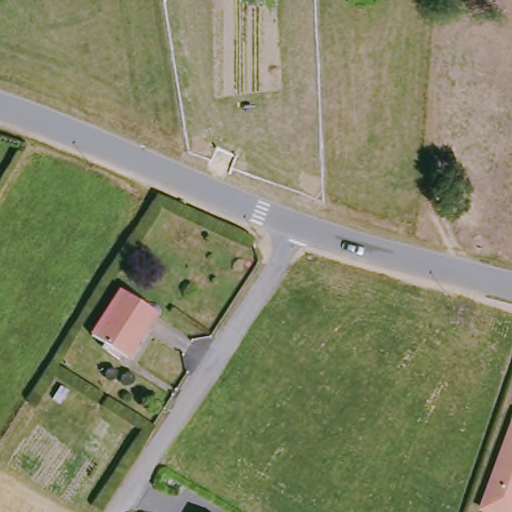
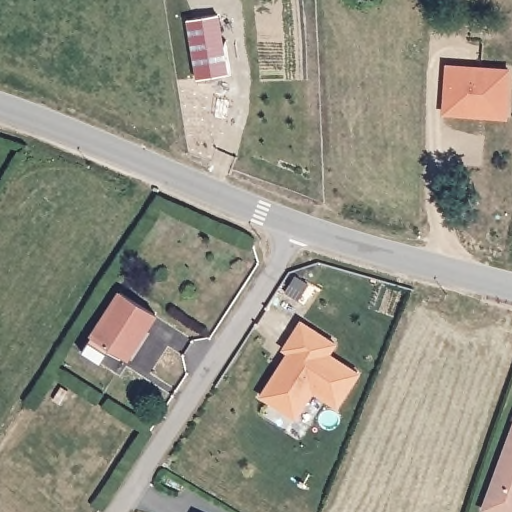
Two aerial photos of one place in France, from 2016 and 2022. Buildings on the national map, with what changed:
new [(215,14),(222,74),(192,77),(185,17),(215,14)]
new [(447,111),(449,63),(512,67),(509,109),(509,114),(480,112),(447,111)]
unchanged [(91,338),(120,291),(155,312),(126,360),(91,338)]
new [(339,410),(314,393),(297,421),(262,398),(279,372),(284,375),(295,358),(285,352),(302,325),(337,347),(330,357),(360,377),(339,410)]
unchanged [(487,512),(512,439),(512,512),(487,512)]

